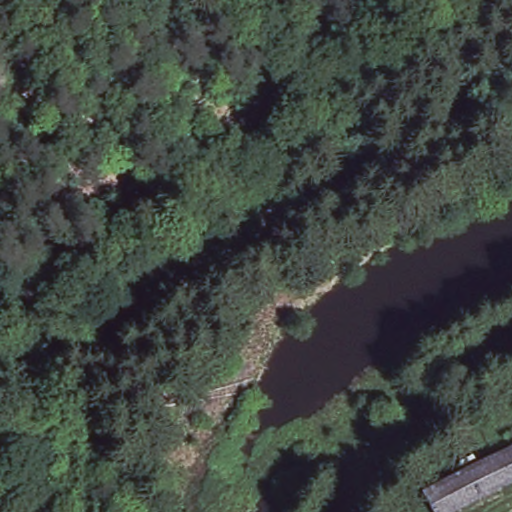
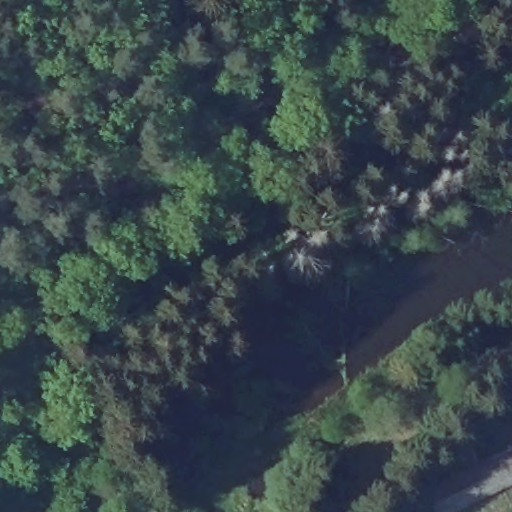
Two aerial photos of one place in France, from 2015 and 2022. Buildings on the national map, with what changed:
unchanged [(512,481),(446,508),(437,485),(512,455),(512,481)]

